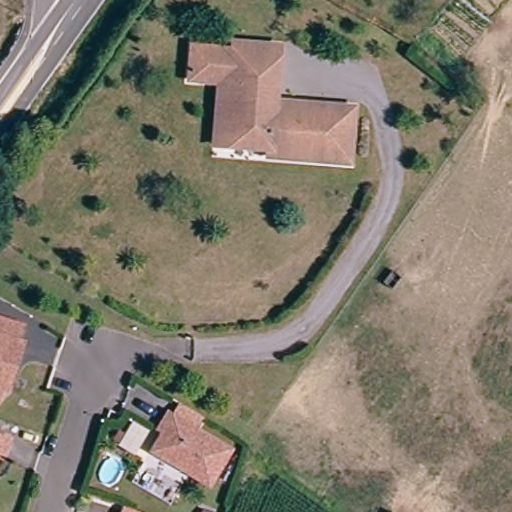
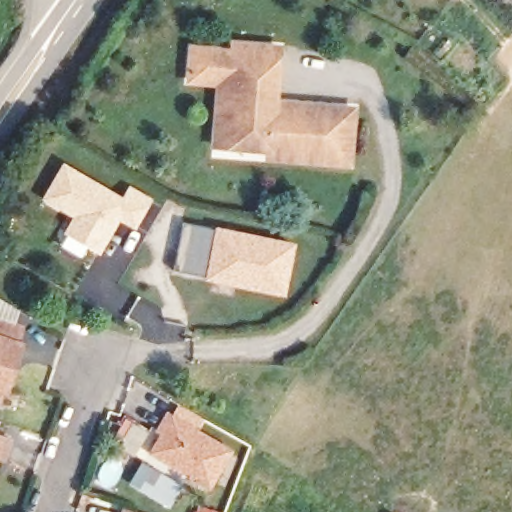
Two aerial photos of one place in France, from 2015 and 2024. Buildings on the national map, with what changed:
unchanged [(194,88),(194,67),(194,59),(217,58),(228,57),(228,52),(273,52),(273,102),(287,101),(351,101),(351,157),(270,158),(270,151),(229,151),(220,151),(219,87),(194,88)]
new [(123,197),(130,186),(154,199),(135,231),(121,221),(101,255),(63,235),(74,217),(41,200),(63,162),(123,197)]
new [(217,229),(217,225),(296,243),(286,296),(205,281),(206,277),(175,272),(185,222),(217,229)]
unchanged [(18,332),(13,347),(19,349),(5,390),(2,388),(0,394),(0,326),(18,332)]
unchanged [(221,453),(202,488),(184,478),(186,473),(180,470),(178,474),(147,456),(159,435),(152,431),(161,417),(221,453)]
unchanged [(1,442),(0,445),(0,442),(1,442)]
new [(398,512),(385,512),(389,506),(398,512)]

